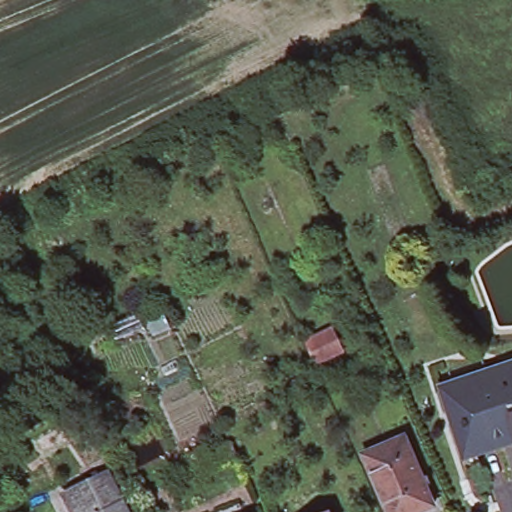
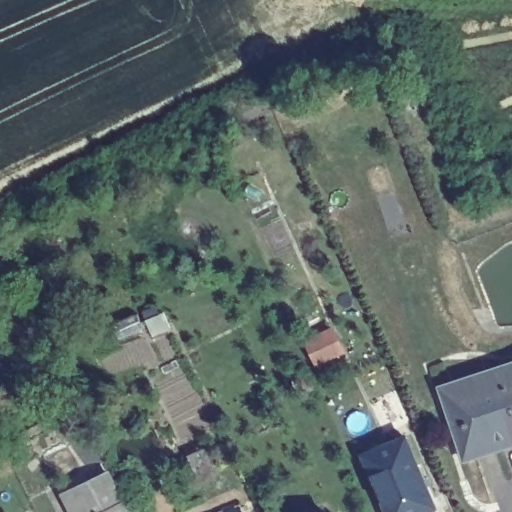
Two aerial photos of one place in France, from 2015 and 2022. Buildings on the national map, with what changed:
unchanged [(324,332),(335,356),(309,368),(297,344),(324,332)]
unchanged [(458,457),(435,387),(512,361),(512,439),(458,457)]
unchanged [(286,385),(304,377),(312,394),(294,402),(286,385)]
unchanged [(361,452),(402,434),(432,504),(414,512),(387,512),(361,452)]
unchanged [(90,512),(72,512),(62,492),(107,471),(119,498),(90,512)]
unchanged [(126,512),(90,512),(119,498),(126,512)]

